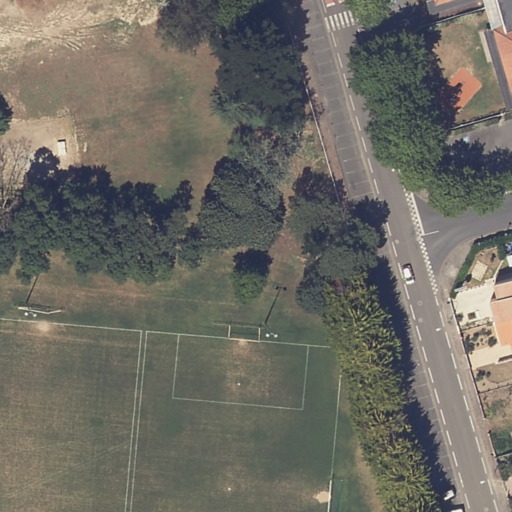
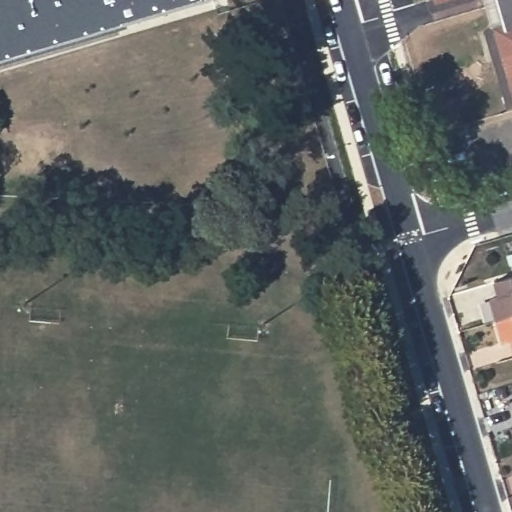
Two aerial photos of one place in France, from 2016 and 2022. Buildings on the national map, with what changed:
demolished [(100,0),(0,29),(0,0),(100,0)]
new [(209,0),(0,60),(0,0),(209,0)]
unchanged [(431,1),(461,0),(462,0),(476,0),(424,15),(423,4),(431,1)]
unchanged [(461,0),(431,1),(431,0),(462,0),(461,0)]
unchanged [(493,36),(491,39),(490,42),(490,45),(491,48),(492,51),(495,53),(500,54),(508,83),(504,84),(511,106),(507,107),(484,30),(493,27),(485,0),(497,0),(505,31),(495,35),(493,36)]
unchanged [(504,84),(508,83),(500,54),(495,53),(492,51),(491,48),(490,45),(490,42),(491,39),(493,36),(495,35),(505,31),(497,0),(512,0),(512,106),(511,106),(504,84)]
unchanged [(495,294),(503,291),(499,277),(505,275),(512,274),(512,313),(502,316),(495,294)]
unchanged [(502,316),(512,313),(512,337),(508,337),(502,316)]
unchanged [(512,428),(512,430),(511,428),(512,428)]

